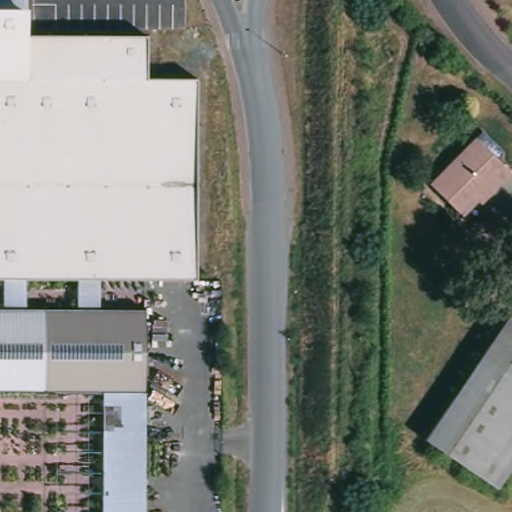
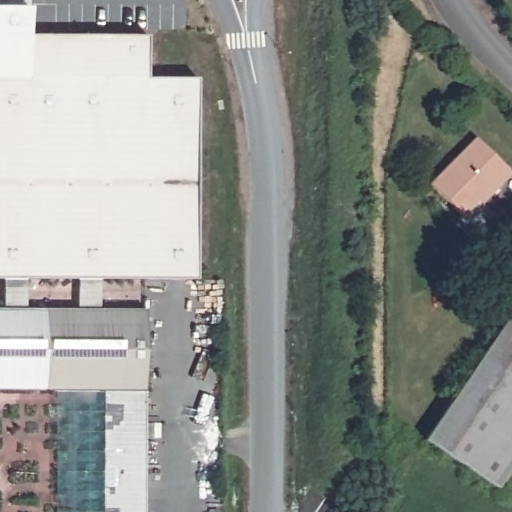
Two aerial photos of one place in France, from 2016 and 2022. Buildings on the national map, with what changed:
unchanged [(25,9),(26,37),(145,37),(146,80),(196,80),(193,278),(99,279),(99,310),(142,310),(142,512),(99,512),(100,392),(0,391),(0,308),(3,307),(4,278),(0,278),(0,0),(25,0),(25,9)]
unchanged [(509,173),(496,187),(493,184),(461,215),(430,184),(475,139),(509,173)]
unchanged [(427,442),(507,317),(512,320),(512,469),(497,491),(427,442)]

